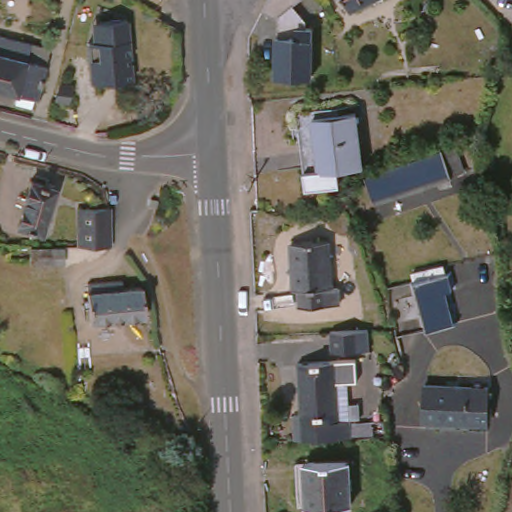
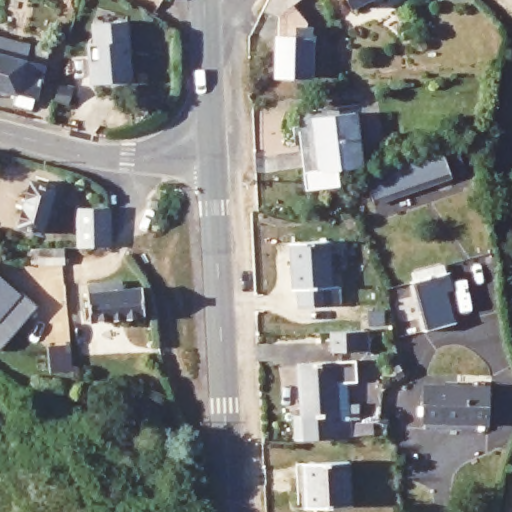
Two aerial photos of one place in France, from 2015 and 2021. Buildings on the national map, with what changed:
unchanged [(265,0),(298,0),(294,4),(286,11),(288,22),(279,22),(265,22),(264,2),(265,0)]
unchanged [(344,10),(339,0),(365,0),(344,10)]
unchanged [(279,78),(279,31),(279,22),(288,22),(286,11),(294,4),(313,24),(313,76),(279,78)]
unchanged [(139,76),(93,80),(89,20),(134,18),(139,76)]
unchanged [(17,97),(19,86),(0,83),(0,27),(53,36),(43,90),(39,90),(38,100),(31,99),(17,97)]
unchanged [(68,112),(71,95),(85,96),(81,113),(68,112)]
unchanged [(318,114),(359,110),(363,161),(341,164),(343,179),(306,183),(305,164),(321,163),(318,114)]
unchanged [(438,148),(446,174),(385,197),(376,171),(438,148)]
unchanged [(55,183),(42,229),(17,222),(30,175),(55,183)]
unchanged [(82,206),(113,205),(114,243),(84,243),(82,206)]
unchanged [(299,283),(296,234),(331,232),(334,281),(346,281),(346,300),(307,302),(306,283),(299,283)]
unchanged [(435,270),(433,260),(446,257),(448,265),(454,263),(458,281),(450,283),(459,317),(434,322),(420,274),(435,270)]
unchanged [(53,274),(78,272),(79,289),(53,290),(53,274)]
new [(0,347),(0,273),(37,303),(0,347)]
unchanged [(95,277),(128,275),(128,280),(146,278),(148,310),(96,314),(93,282),(96,282),(95,277)]
unchanged [(335,346),(334,327),(371,325),(372,345),(335,346)]
unchanged [(303,409),(299,357),(347,355),(357,355),(358,374),(349,375),(354,430),(297,435),(295,409),(303,409)]
unchanged [(431,382),(492,386),(489,416),(473,414),(472,422),(427,418),(431,382)]
unchanged [(306,491),(304,464),(358,462),(361,503),(312,506),(311,491),(306,491)]

